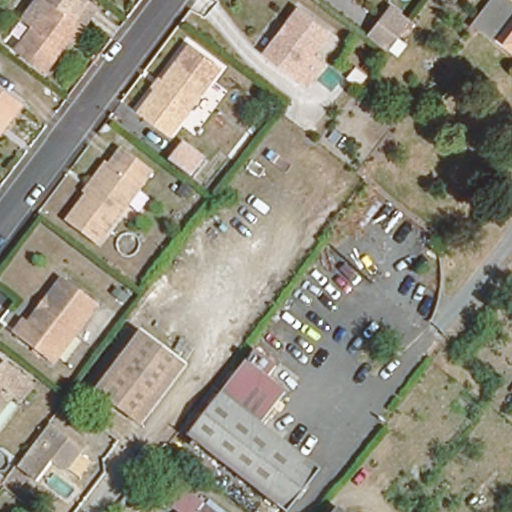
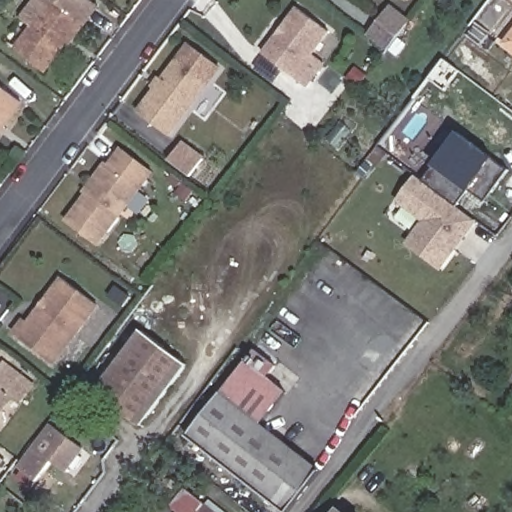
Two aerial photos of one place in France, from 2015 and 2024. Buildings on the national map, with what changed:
unchanged [(24,16),(36,0),(95,0),(97,2),(84,19),(44,70),(32,60),(17,47),(6,39),(24,16)]
unchanged [(415,24),(390,56),(365,35),(389,5),(415,24)]
unchanged [(297,12),(327,36),(306,60),(322,76),(307,91),(262,57),(297,12)]
unchanged [(512,31),(512,45),(505,40),(512,31)]
unchanged [(207,92),(167,144),(137,120),(177,69),(207,92)]
unchanged [(7,100),(21,111),(2,135),(0,138),(0,94),(7,100)]
new [(510,171),(486,203),(470,192),(468,194),(458,207),(422,181),(432,167),(458,131),(495,159),(494,159),(510,171)]
unchanged [(123,147),(152,169),(97,244),(67,221),(123,147)]
new [(404,244),(421,222),(395,202),(405,188),(415,176),(422,181),(458,207),(477,222),(441,272),(422,257),(404,244)]
unchanged [(96,308),(51,367),(12,337),(23,322),(27,325),(37,312),(47,300),(61,282),(96,308)]
unchanged [(95,390),(140,328),(187,363),(142,425),(95,390)]
unchanged [(279,359),(266,377),(285,392),(258,425),(321,474),(291,512),(281,512),(190,441),(224,397),(250,365),(263,347),(279,359)]
unchanged [(8,368),(32,387),(21,402),(10,393),(0,406),(0,378),(8,368)]
unchanged [(67,456),(59,467),(45,457),(29,480),(13,467),(39,432),(45,425),(74,446),(67,456)]
unchanged [(217,512),(196,512),(204,502),(217,512)]

